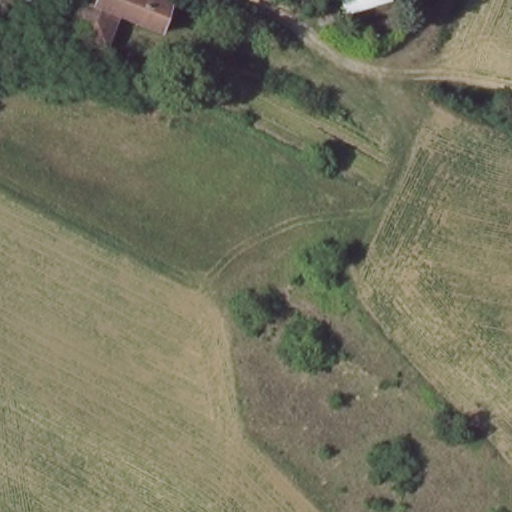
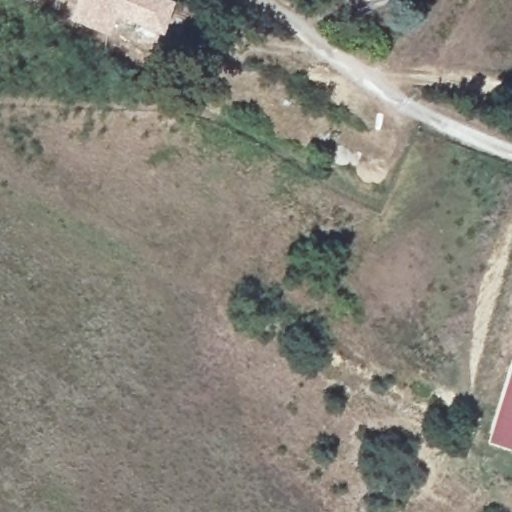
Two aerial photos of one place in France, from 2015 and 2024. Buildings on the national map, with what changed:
unchanged [(177,35),(155,26),(154,30),(110,12),(93,45),(41,21),(49,3),(71,13),(77,0),(147,0),(164,7),(167,1),(188,11),(177,35)]
unchanged [(372,9),(342,15),(336,0),(390,0),(397,24),(378,28),(372,9)]
new [(512,368),(512,449),(488,441),(512,368)]

